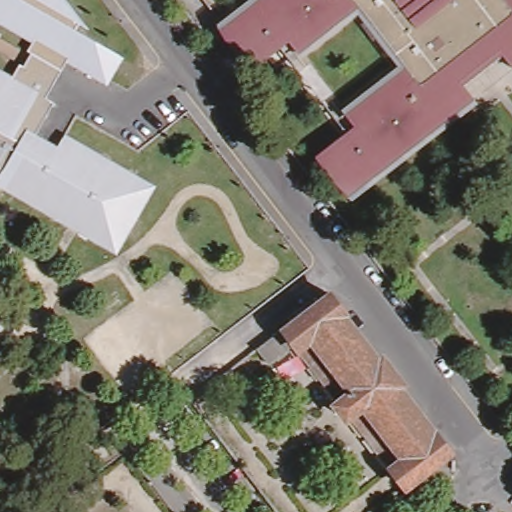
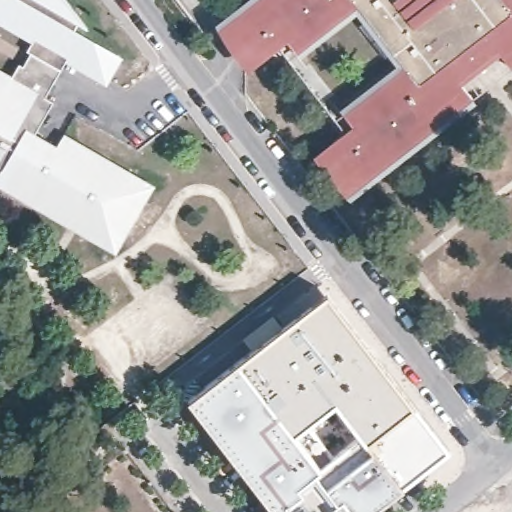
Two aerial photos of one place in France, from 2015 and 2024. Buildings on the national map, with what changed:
unchanged [(77,12),(76,23),(86,20),(119,49),(107,72),(71,51),(62,65),(55,79),(47,91),(55,95),(37,129),(58,141),(64,130),(147,177),(158,184),(144,194),(138,208),(136,212),(131,220),(123,231),(118,247),(116,247),(108,240),(99,234),(97,236),(0,183),(0,66),(13,74),(22,57),(30,63),(38,50),(29,45),(36,32),(0,11),(0,0),(68,0),(77,12)]
unchanged [(251,0),(343,0),(351,10),(292,57),(281,43),(257,62),(235,33),(225,20),(235,12),(251,0)]
unchanged [(507,5),(511,1),(510,0),(512,0),(512,64),(507,67),(497,54),(460,83),(470,96),(364,180),(354,187),(344,174),(323,145),(346,127),(335,113),(395,67),(407,83),(411,80),(350,0),(400,0),(419,25),(451,0),(503,0),(507,5)]
new [(419,25),(400,0),(451,0),(419,25)]
new [(413,402),(452,450),(389,501),(374,512),(273,512),(186,400),(328,291),(413,402)]
demolished [(343,311),(339,314),(373,359),(377,356),(395,380),(392,383),(427,427),(430,425),(444,443),(397,481),(382,461),(393,453),(359,409),(354,413),(335,388),(341,385),(306,340),(295,348),(279,328),(327,291),(343,311)]
demolished [(289,350),(268,366),(257,351),(278,336),(289,350)]

